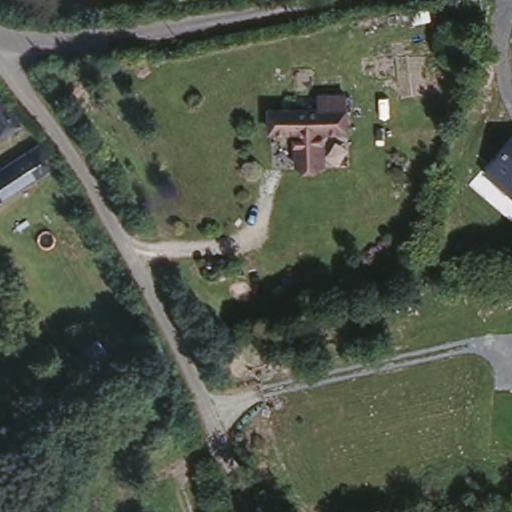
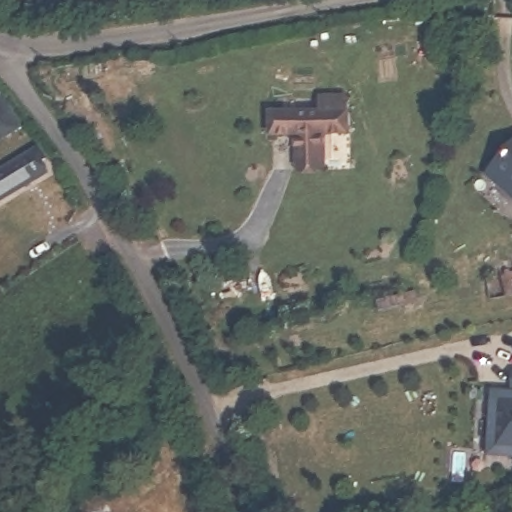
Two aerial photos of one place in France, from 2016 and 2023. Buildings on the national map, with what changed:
unchanged [(0,136),(0,85),(2,87),(15,112),(21,125),(0,136)]
unchanged [(327,132),(327,170),(297,170),(297,133),(274,134),(273,111),(325,109),(325,93),(350,93),(350,108),(351,132),(327,132)]
unchanged [(512,138),(512,198),(482,172),(512,138)]
unchanged [(28,147),(43,172),(0,201),(0,164),(28,147)]
new [(512,382),(512,457),(488,456),(488,381),(512,382)]

